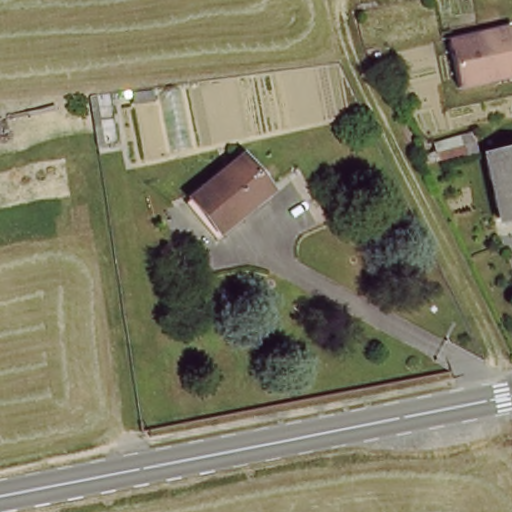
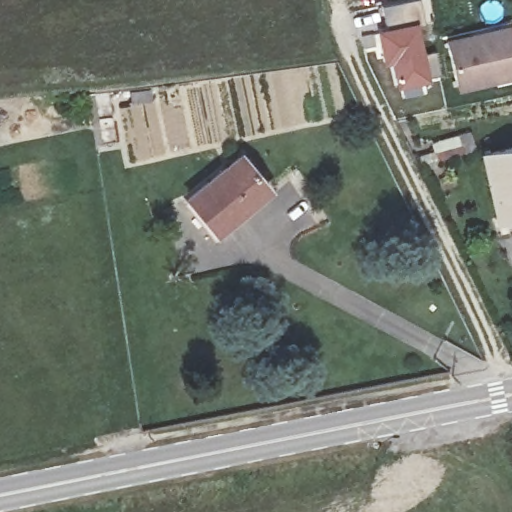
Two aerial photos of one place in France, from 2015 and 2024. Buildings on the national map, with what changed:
new [(396,87),(374,40),(362,42),(360,36),(386,27),(382,5),(406,0),(419,0),(423,20),(418,21),(432,76),(396,87)]
unchanged [(493,85),(456,92),(447,46),(509,33),(512,50),(512,85),(494,89),(493,85)]
unchanged [(512,151),(512,211),(502,214),(489,156),(512,151)]
unchanged [(187,202),(239,157),(267,187),(214,234),(187,202)]

